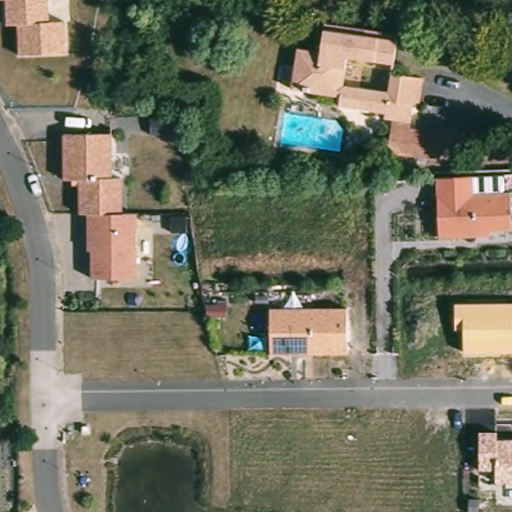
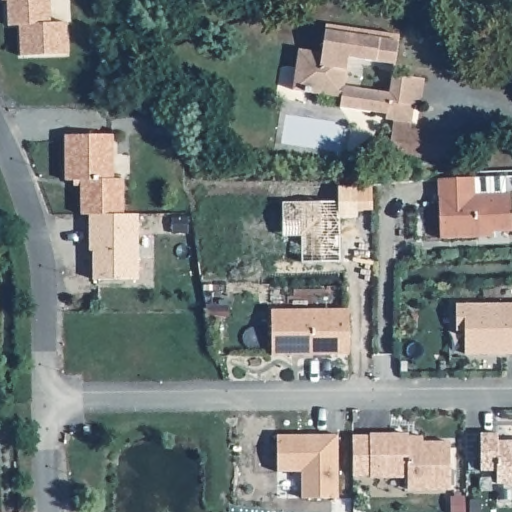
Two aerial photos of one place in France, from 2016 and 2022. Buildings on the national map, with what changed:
unchanged [(51,22),(65,22),(66,53),(18,55),(17,24),(3,23),(3,0),(49,0),(51,22)]
unchanged [(390,114),(343,107),(344,97),(296,91),(299,68),(302,49),(326,52),(330,24),(402,36),(398,74),(428,79),(425,106),(417,106),(415,123),(407,122),(390,120),(390,114)]
unchanged [(459,137),(444,162),(394,154),(396,135),(405,135),(406,129),(459,137)]
unchanged [(64,181),(64,135),(111,135),(111,179),(121,179),(121,215),(88,215),(80,215),(80,186),(72,186),(72,181),(64,181)]
unchanged [(474,177),(474,194),(489,194),(488,181),(505,181),(505,194),(511,194),(512,212),(512,231),(490,232),(491,236),(436,236),(435,178),(474,177)]
unchanged [(136,215),(136,279),(91,280),(91,250),(88,250),(88,232),(88,215),(121,215),(136,215)]
unchanged [(463,331),(454,332),(454,301),(512,302),(512,354),(463,356),(463,331)]
unchanged [(330,308),(331,353),(271,354),(270,309),(330,308)]
unchanged [(90,427),(90,434),(83,434),(83,427),(90,427)]
unchanged [(496,471),(479,472),(478,433),(497,434),(497,441),(512,441),(512,483),(495,483),(496,471)]
new [(407,434),(407,437),(421,437),(421,443),(449,442),(449,489),(406,489),(406,477),(369,477),(369,435),(407,434)]
new [(298,472),(276,472),(275,435),(336,435),(337,498),(299,497),(298,472)]

